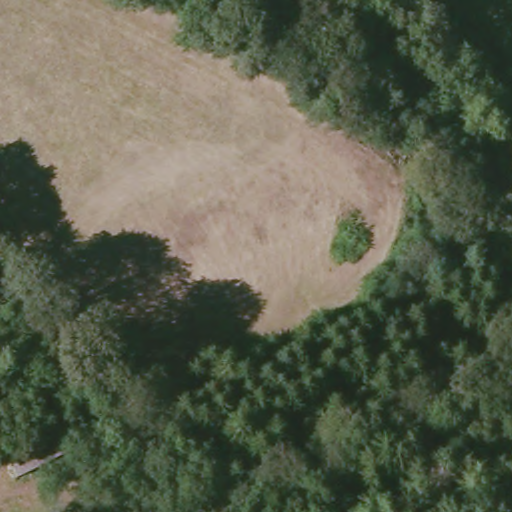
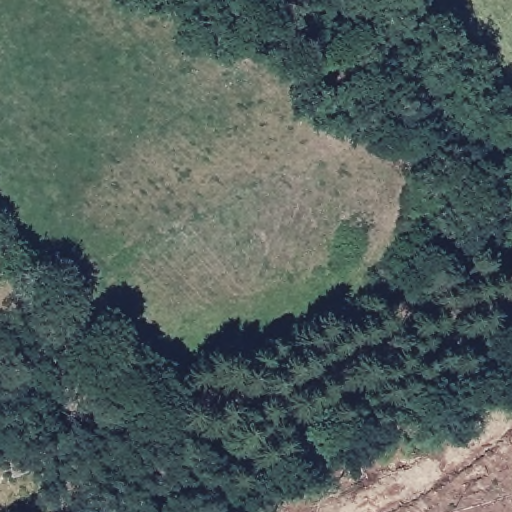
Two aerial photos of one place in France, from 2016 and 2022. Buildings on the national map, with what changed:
unchanged [(12,453),(62,432),(72,458),(22,480),(12,453)]

